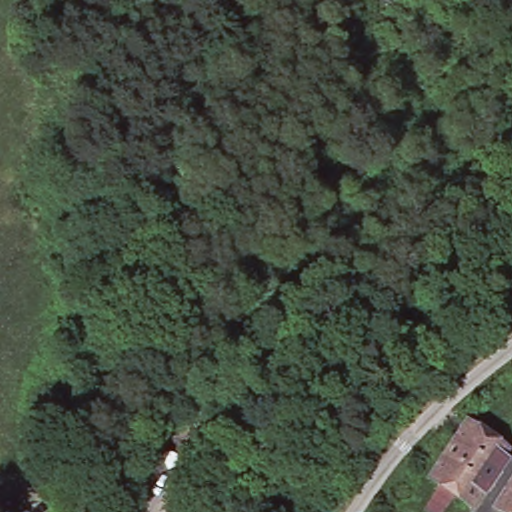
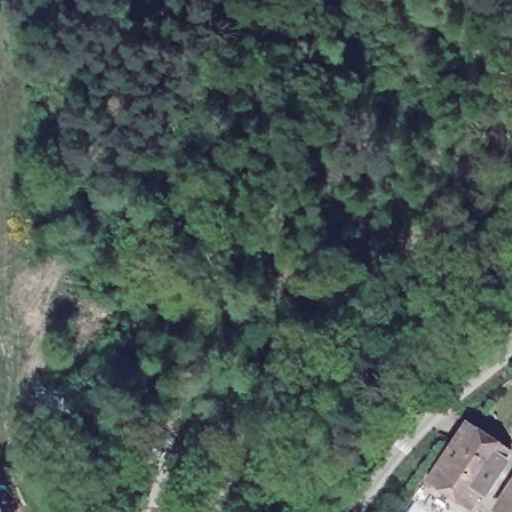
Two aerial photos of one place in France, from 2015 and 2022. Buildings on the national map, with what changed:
unchanged [(512,460),(489,497),(482,492),(470,512),(424,482),(466,420),(512,450),(512,460)]
unchanged [(512,479),(512,512),(491,512),(512,479)]

